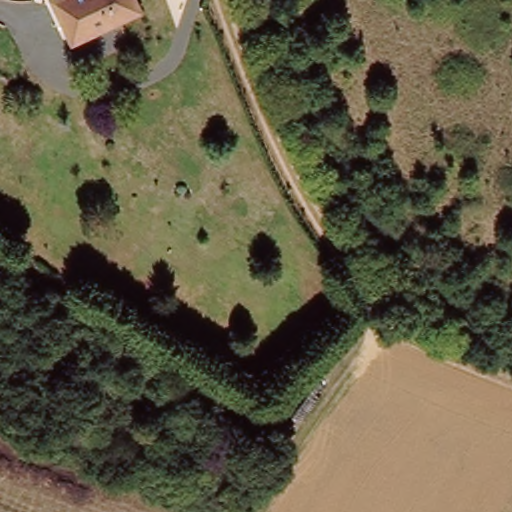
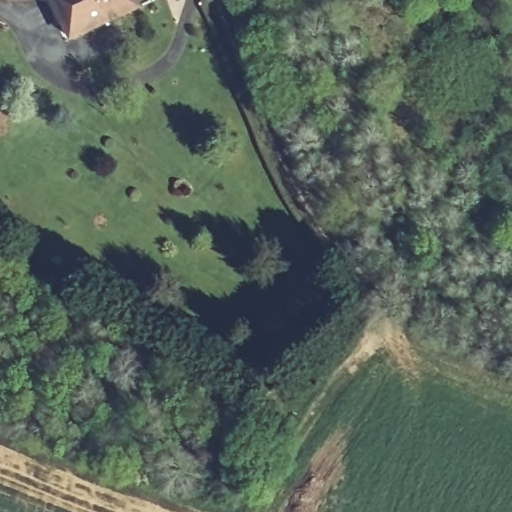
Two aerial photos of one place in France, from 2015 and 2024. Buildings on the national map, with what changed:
unchanged [(65,40),(52,0),(133,0),(138,11),(65,40)]

